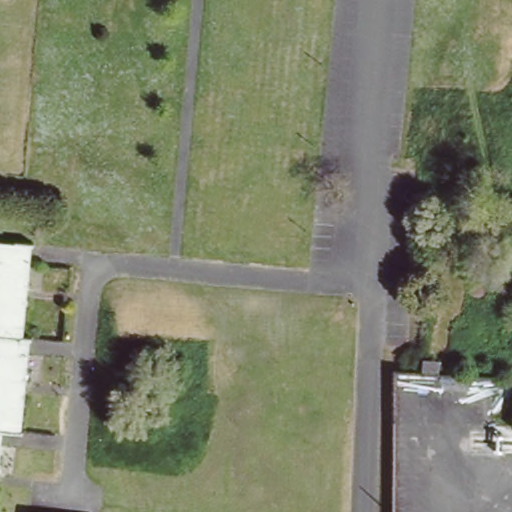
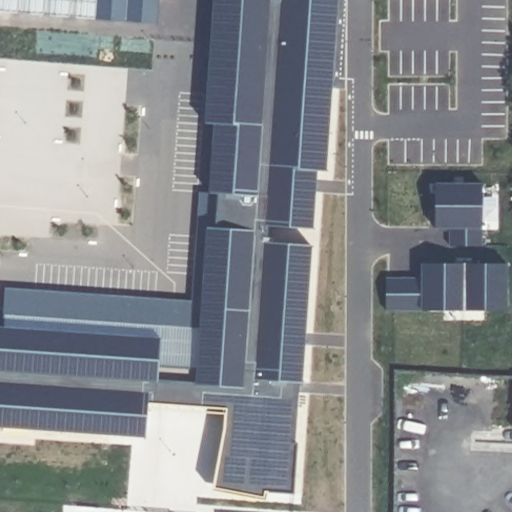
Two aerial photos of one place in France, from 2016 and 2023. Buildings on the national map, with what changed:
new [(0,12),(0,0),(158,0),(156,24),(0,12)]
new [(1,328),(159,338),(158,366),(197,368),(207,228),(214,228),(217,193),(209,193),(214,123),(205,122),(213,0),(337,0),(325,171),(316,171),(312,228),(271,226),(270,243),(311,245),(301,383),(299,383),(295,443),(298,443),(294,494),(219,489),(225,407),(148,402),(146,437),(0,427),(0,328),(1,328)]
new [(434,183),(482,184),(482,247),(449,246),(449,228),(434,228),(434,183)]
new [(159,338),(162,299),(191,301),(198,192),(209,193),(217,193),(214,228),(207,228),(197,368),(158,366),(159,338)]
demolished [(9,244),(10,242),(28,243),(28,247),(25,247),(23,280),(0,275),(0,244),(9,244)]
new [(386,278),(422,279),(422,264),(506,265),(506,311),(385,310),(386,278)]
demolished [(23,280),(19,337),(28,338),(28,340),(25,340),(19,431),(21,431),(21,434),(0,432),(0,275),(23,280)]
new [(4,289),(162,299),(159,338),(1,328),(4,289)]

